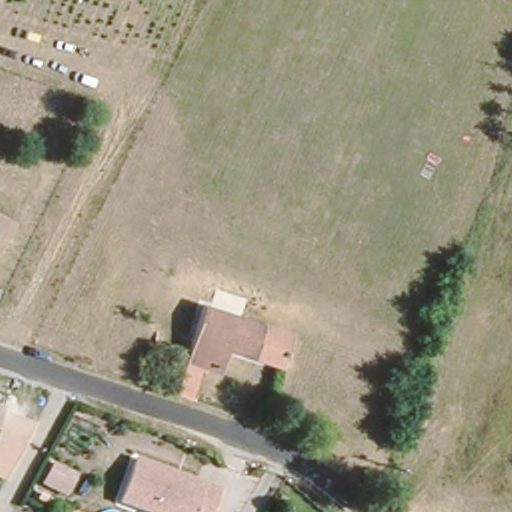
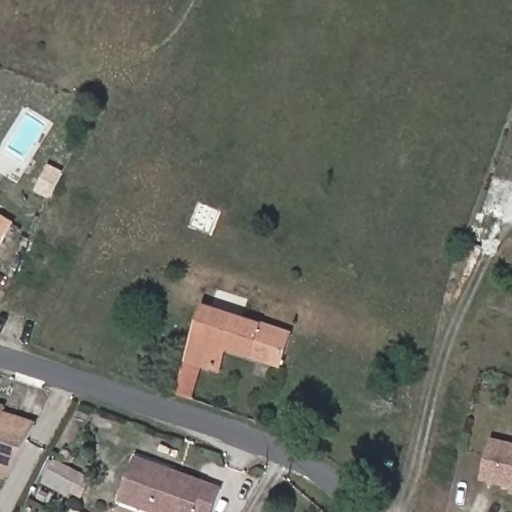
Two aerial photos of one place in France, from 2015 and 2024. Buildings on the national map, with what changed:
unchanged [(0,245),(0,214),(15,223),(0,245)]
unchanged [(178,352),(184,329),(193,298),(206,302),(286,329),(274,360),(217,340),(211,361),(178,352)]
unchanged [(0,420),(0,404),(5,405),(0,420)]
unchanged [(0,478),(0,426),(5,413),(36,422),(6,480),(0,478)]
new [(482,482),(492,438),(512,443),(512,489),(482,482)]
unchanged [(135,456),(224,487),(213,512),(145,512),(118,501),(135,456)]
new [(511,495),(512,489),(512,495),(511,495)]

